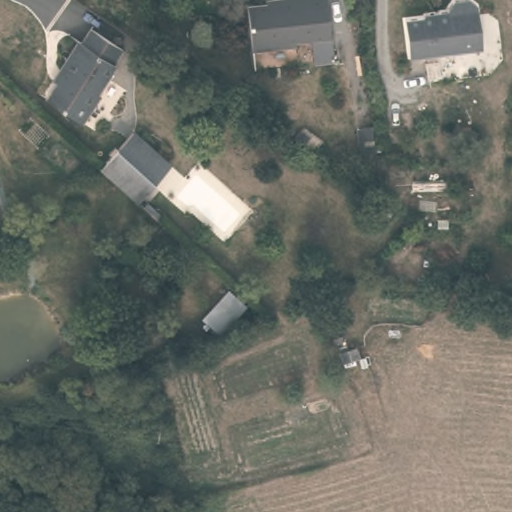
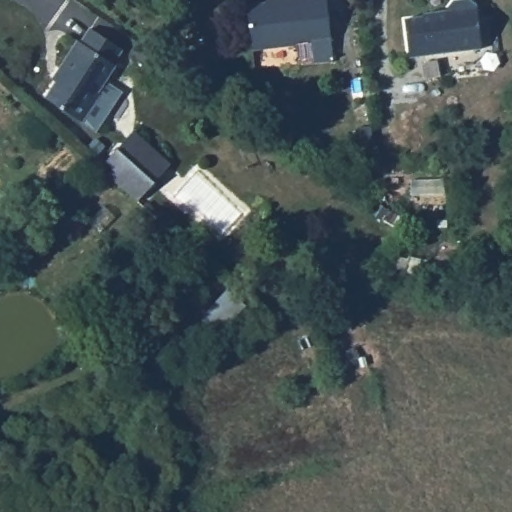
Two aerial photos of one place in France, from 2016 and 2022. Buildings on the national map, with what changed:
unchanged [(329,62),(311,65),(309,40),(292,42),(293,50),(254,54),(249,10),(272,8),(272,3),(302,0),(322,0),(327,39),(329,62)]
unchanged [(414,57),(409,19),(425,18),(426,13),(452,11),(457,1),(469,0),(479,7),(483,51),(414,57)]
unchanged [(107,67),(112,70),(93,94),(97,99),(78,124),(44,100),(56,81),(51,77),(72,44),(79,47),(87,34),(115,55),(107,67)]
unchanged [(378,154),(362,155),(358,126),(374,124),(378,154)]
unchanged [(132,135),(172,167),(138,207),(95,171),(132,135)]

